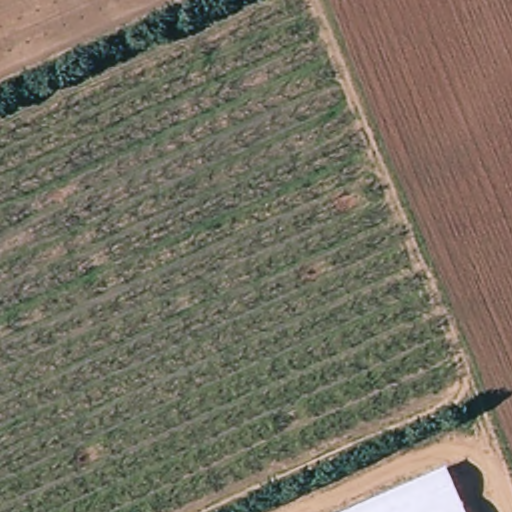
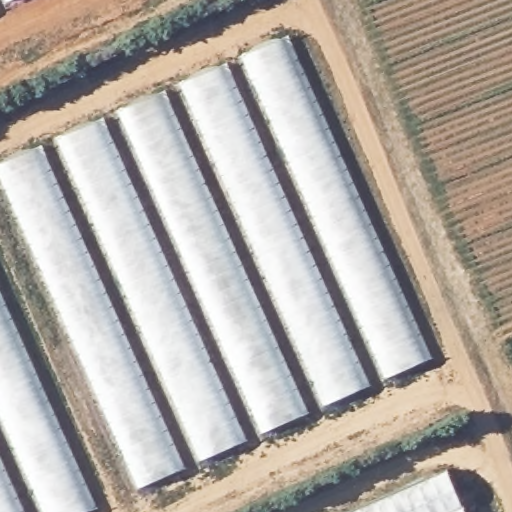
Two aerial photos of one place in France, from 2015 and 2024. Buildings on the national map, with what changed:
new [(0,4),(0,0),(10,0),(0,4)]
new [(139,488),(0,173),(0,165),(284,37),(430,359),(139,488)]
new [(0,512),(0,300),(93,509),(87,512),(0,512)]
unchanged [(348,512),(446,469),(465,512),(348,512)]

